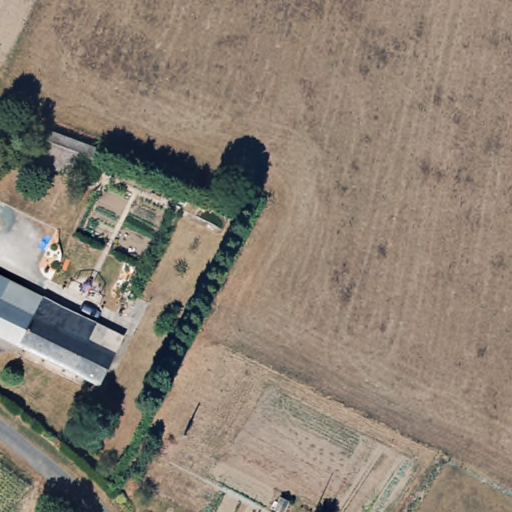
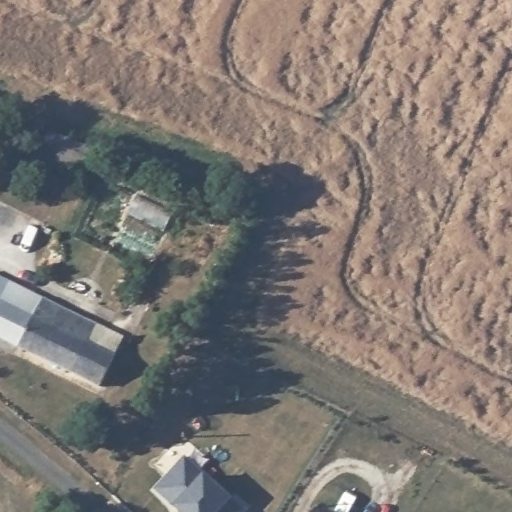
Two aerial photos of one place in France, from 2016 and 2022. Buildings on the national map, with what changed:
unchanged [(111,152),(102,172),(69,160),(65,171),(35,158),(47,126),(111,152)]
unchanged [(111,332),(88,379),(0,336),(0,271),(15,279),(13,284),(49,302),(111,332)]
new [(229,497),(245,511),(245,512),(168,512),(167,511),(171,505),(154,488),(184,455),(202,472),(229,497)]

